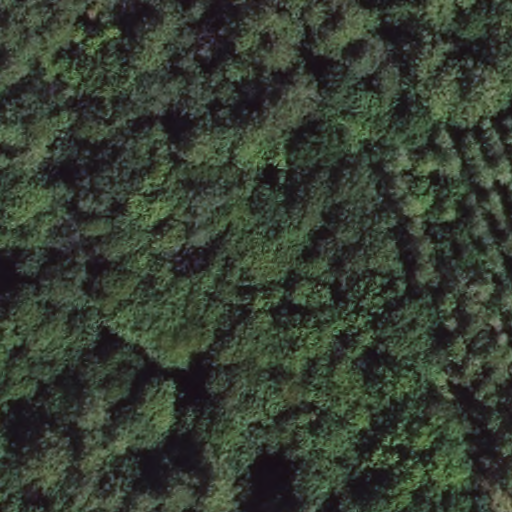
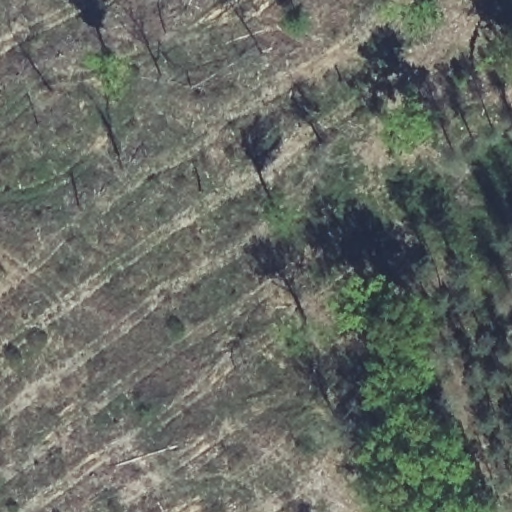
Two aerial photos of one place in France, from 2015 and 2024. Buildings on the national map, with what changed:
[]

